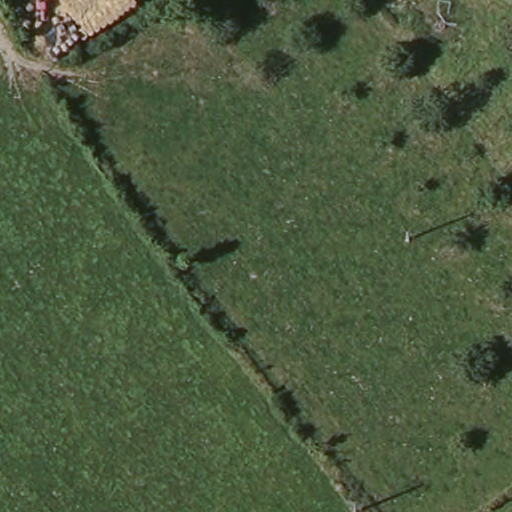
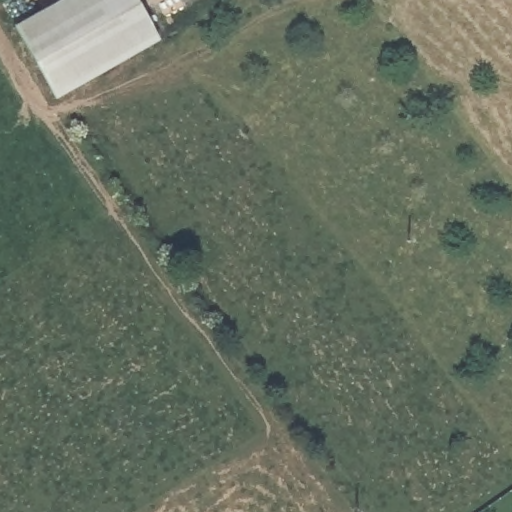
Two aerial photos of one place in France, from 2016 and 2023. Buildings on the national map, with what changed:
new [(59,0),(144,0),(165,36),(56,93),(17,21),(59,0)]

